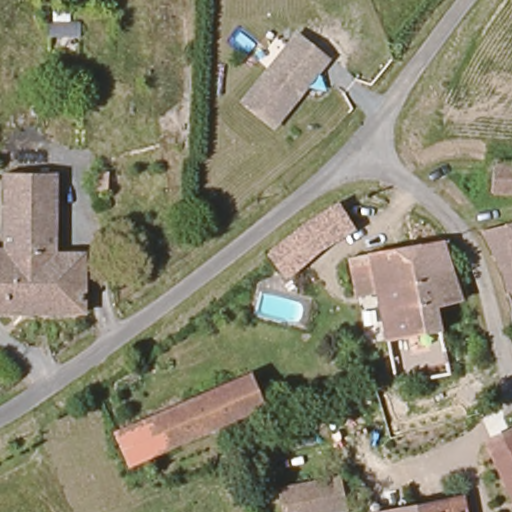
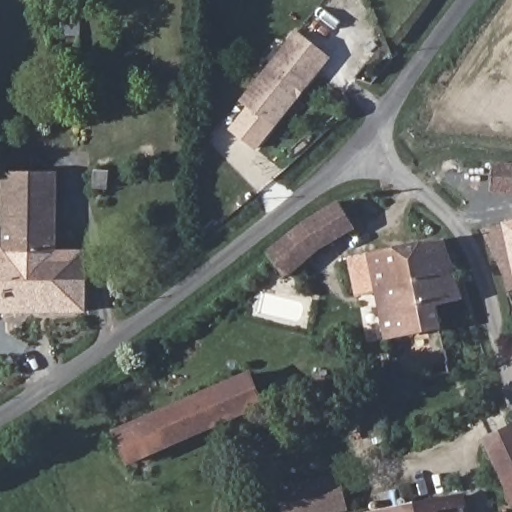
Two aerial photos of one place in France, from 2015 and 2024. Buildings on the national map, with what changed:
unchanged [(296,32),(327,58),(273,125),(242,98),(296,32)]
unchanged [(502,203),(499,168),(512,167),(512,202),(502,203)]
unchanged [(0,250),(1,255),(8,256),(9,177),(60,177),(59,255),(89,255),(89,286),(89,314),(0,315),(0,250)]
unchanged [(339,200),(359,226),(290,283),(269,257),(339,200)]
unchanged [(101,204),(101,214),(88,215),(87,204),(101,204)]
unchanged [(512,231),(512,272),(494,236),(512,231)]
unchanged [(470,297),(444,304),(459,372),(409,383),(388,295),(360,301),(354,265),(453,237),(464,274),(470,297)]
unchanged [(254,379),(270,411),(134,469),(115,438),(254,379)]
unchanged [(487,436),(512,426),(512,496),(487,436)]
unchanged [(339,479),(344,507),(312,512),(286,512),(283,492),(339,479)]
unchanged [(464,498),(467,512),(395,512),(464,498)]

